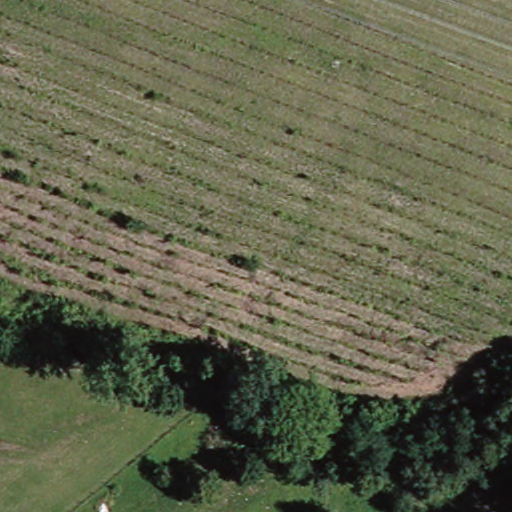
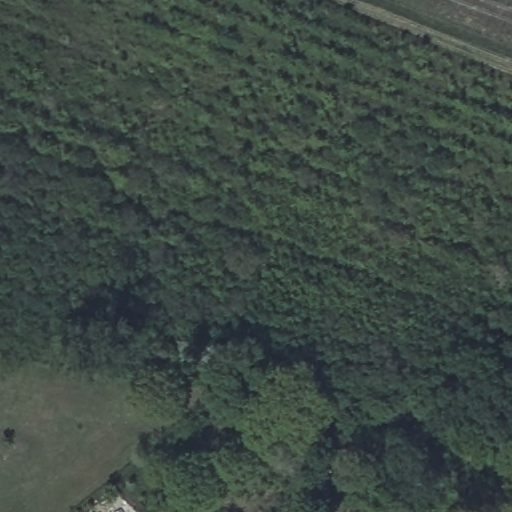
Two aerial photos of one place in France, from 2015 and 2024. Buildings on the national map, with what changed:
[]

